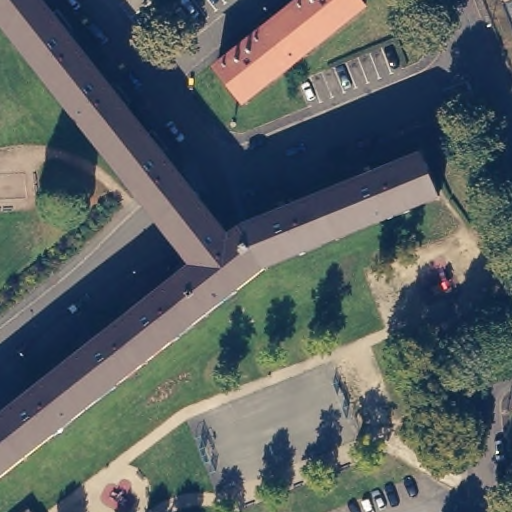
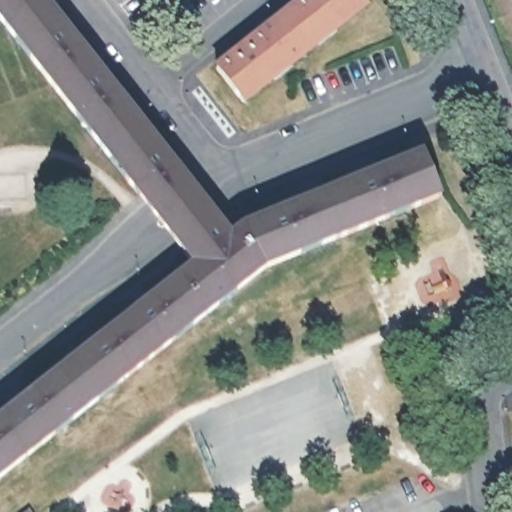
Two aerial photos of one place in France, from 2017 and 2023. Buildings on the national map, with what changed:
unchanged [(138,192),(0,17),(0,0),(41,0),(169,162),(172,166),(140,193),(138,192)]
unchanged [(299,0),(365,0),(366,2),(244,97),(217,64),(299,0)]
unchanged [(220,226),(222,230),(230,240),(243,230),(423,157),(440,197),(265,267),(0,476),(0,421),(197,267),(186,252),(220,226)]
unchanged [(187,186),(220,226),(186,252),(140,193),(172,166),(187,186)]
unchanged [(25,511),(26,512),(24,512),(25,511)]

